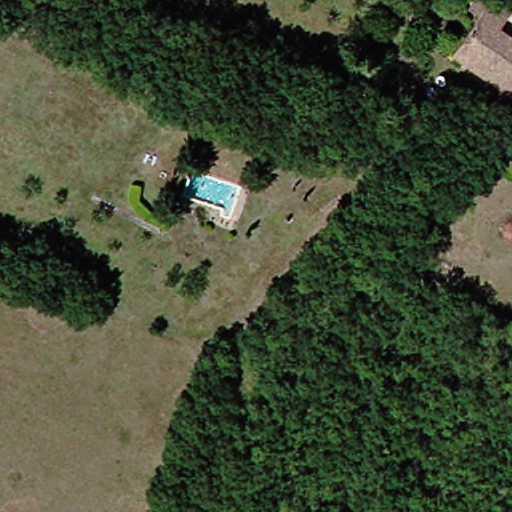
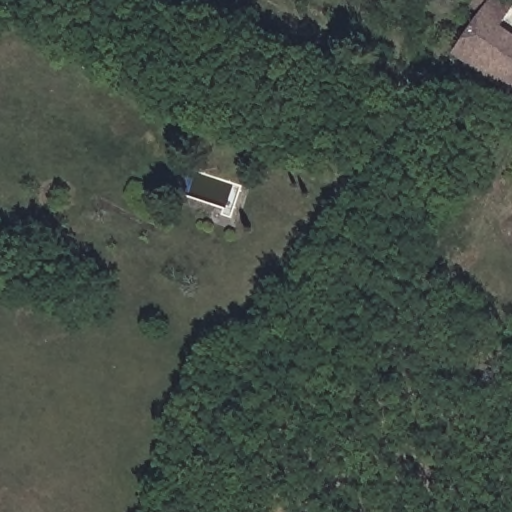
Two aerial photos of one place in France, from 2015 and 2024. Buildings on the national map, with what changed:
unchanged [(445,60),(453,48),(469,24),(457,17),(467,0),(477,0),(484,5),(489,0),(491,0),(507,11),(495,34),(512,45),(512,101),(503,94),(467,74),(445,60)]

